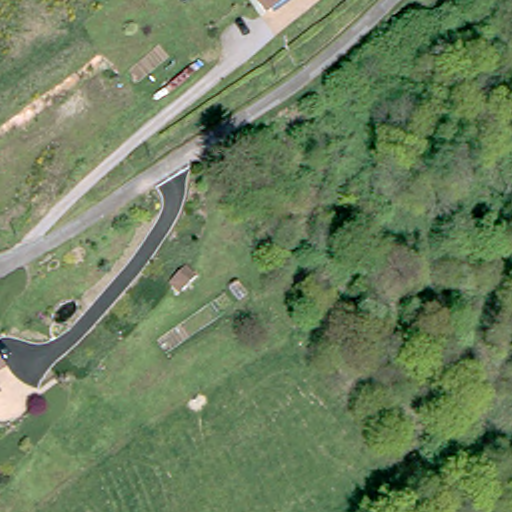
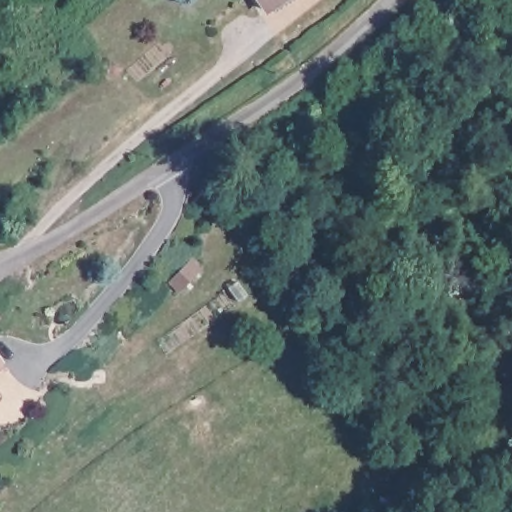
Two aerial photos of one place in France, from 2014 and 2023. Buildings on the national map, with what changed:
unchanged [(286,0),(270,12),(261,0),(286,0)]
unchanged [(0,375),(0,361),(6,371),(0,375)]

